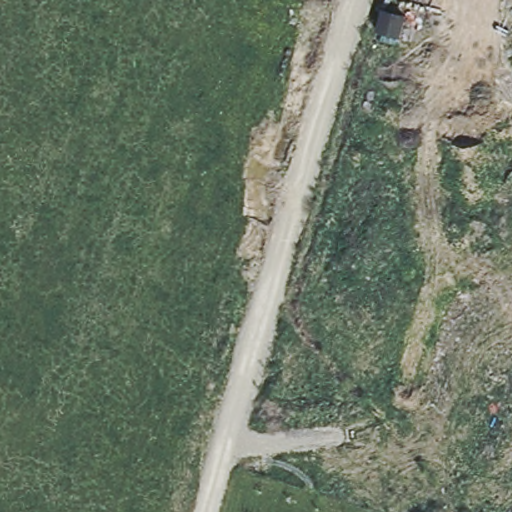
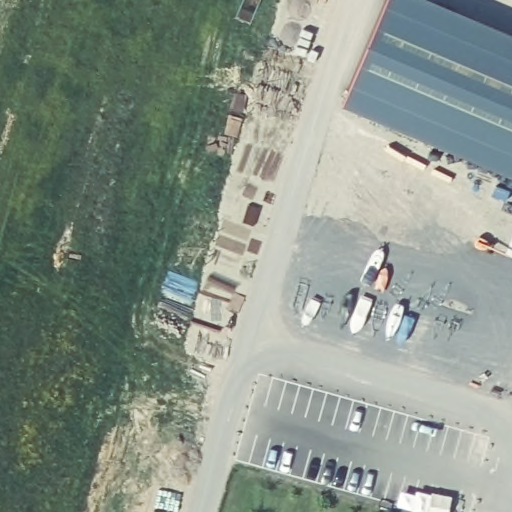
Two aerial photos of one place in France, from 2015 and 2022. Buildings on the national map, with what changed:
new [(426,0),(512,37),(512,178),(342,106),(388,0),(426,0)]

